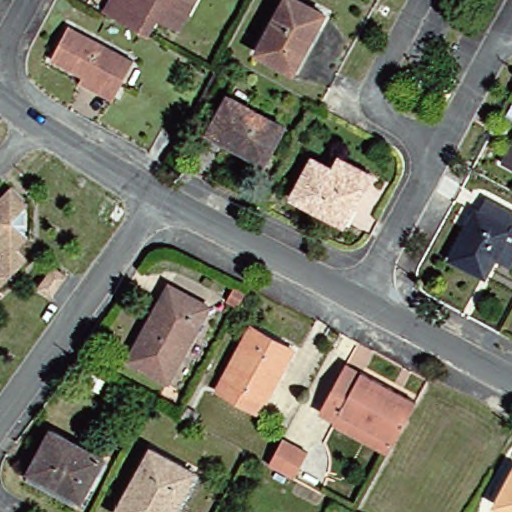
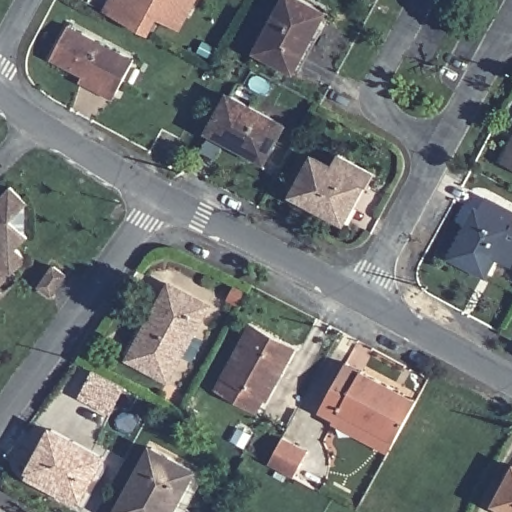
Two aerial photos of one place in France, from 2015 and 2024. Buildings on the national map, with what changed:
unchanged [(149,19),(139,38),(103,15),(110,0),(190,0),(180,18),(172,32),(149,19)]
unchanged [(283,0),(288,0),(318,16),(285,76),(251,60),(283,0)]
unchanged [(73,83),(76,75),(77,72),(48,58),(63,30),(126,62),(109,91),(105,100),(73,83)]
unchanged [(273,129),(254,162),(201,136),(218,100),(273,129)]
unchanged [(512,171),(497,164),(512,137),(512,171)]
unchanged [(166,145),(183,153),(174,170),(157,162),(166,145)]
unchanged [(308,160),(322,167),(329,155),(361,172),(355,184),(351,182),(330,221),(286,199),(308,160)]
unchanged [(13,185),(30,202),(25,209),(24,231),(27,235),(17,245),(26,258),(0,281),(0,196),(13,185)]
unchanged [(470,219),(478,204),(505,217),(500,227),(512,233),(512,249),(501,269),(483,260),(474,280),(440,264),(466,218),(470,219)]
unchanged [(55,271),(68,282),(50,301),(38,290),(55,271)]
unchanged [(201,309),(162,384),(124,365),(162,289),(201,309)]
unchanged [(262,399),(256,397),(249,409),(213,390),(242,329),(273,344),(286,351),(281,366),(272,377),(262,399)]
unchanged [(330,426),(313,416),(339,365),(409,401),(388,443),(383,453),(330,426)]
new [(126,384),(113,414),(79,399),(92,369),(126,384)]
unchanged [(94,464),(76,501),(25,478),(43,438),(94,464)]
unchanged [(308,459),(295,483),(270,470),(282,445),(308,459)]
unchanged [(194,476),(176,512),(110,512),(141,450),(194,476)]
unchanged [(512,512),(500,512),(493,509),(512,471),(512,512)]

